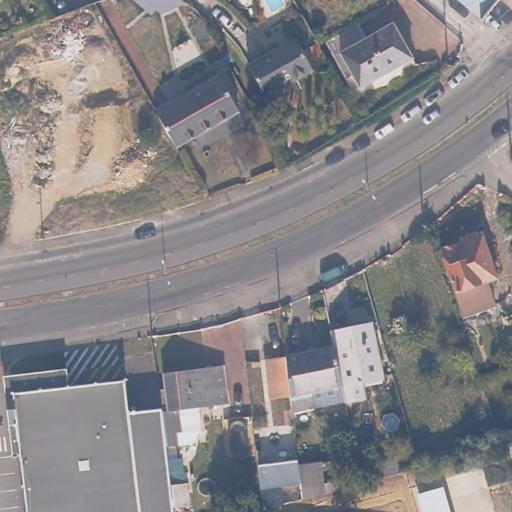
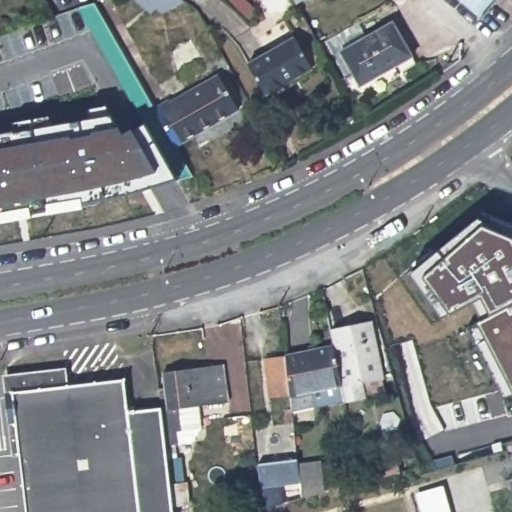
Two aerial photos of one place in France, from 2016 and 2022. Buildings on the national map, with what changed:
unchanged [(139,0),(179,0),(167,15),(162,11),(158,15),(139,0)]
new [(298,3),(296,0),(303,0),(298,3)]
unchanged [(480,18),(461,0),(495,0),(480,18)]
unchanged [(331,37),(355,24),(365,41),(391,27),(411,62),(359,90),(331,37)]
unchanged [(295,40),(311,72),(263,96),(247,65),(295,40)]
unchanged [(166,100),(168,103),(216,77),(235,111),(172,146),(151,108),(166,100)]
new [(112,113),(117,121),(120,120),(125,127),(134,123),(137,127),(146,123),(179,181),(130,197),(82,205),(83,209),(48,216),(47,211),(31,215),(32,219),(0,224),(0,133),(112,113)]
new [(472,335),(484,332),(478,322),(492,317),(481,298),(451,314),(442,317),(409,274),(479,218),(483,211),(512,224),(512,396),(503,398),(472,335)]
demolished [(462,239),(461,235),(480,227),(497,274),(488,277),(497,301),(465,313),(440,246),(462,239)]
unchanged [(370,317),(384,369),(364,375),(368,391),(347,396),(343,382),(334,343),(330,327),(370,317)]
unchanged [(267,379),(264,355),(284,352),(334,343),(343,382),(311,388),(314,404),(291,408),(289,392),(269,394),(267,379)]
unchanged [(170,383),(168,367),(222,360),(226,400),(195,404),(198,426),(186,441),(165,444),(160,405),(158,384),(170,383)]
unchanged [(170,480),(183,478),(186,502),(173,503),(174,512),(24,512),(10,388),(125,376),(129,409),(160,405),(165,444),(168,461),(170,480)]
demolished [(512,442),(505,444),(501,431),(512,428),(512,442)]
unchanged [(297,463),(319,459),(328,488),(301,496),(299,478),(279,481),(281,501),(269,505),(261,507),(256,461),(296,456),(297,463)]
unchanged [(383,478),(379,463),(398,458),(401,473),(383,478)]
unchanged [(423,512),(417,493),(444,487),(452,512),(423,512)]

